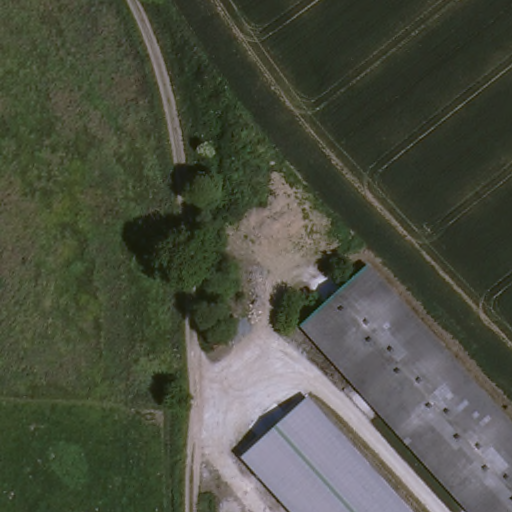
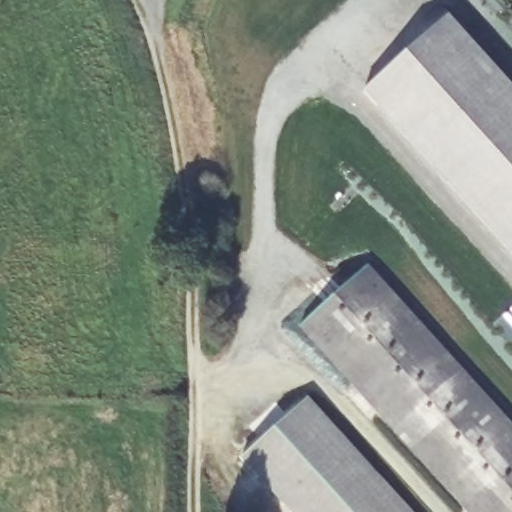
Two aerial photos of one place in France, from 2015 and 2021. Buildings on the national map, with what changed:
new [(365,90),(448,12),(512,83),(512,254),(365,90)]
unchanged [(375,269),(512,418),(512,512),(482,512),(312,328),(375,269)]
unchanged [(313,399),(415,512),(298,512),(249,458),(313,399)]

